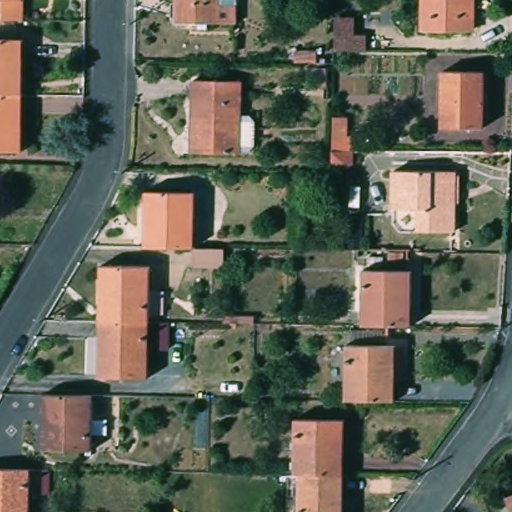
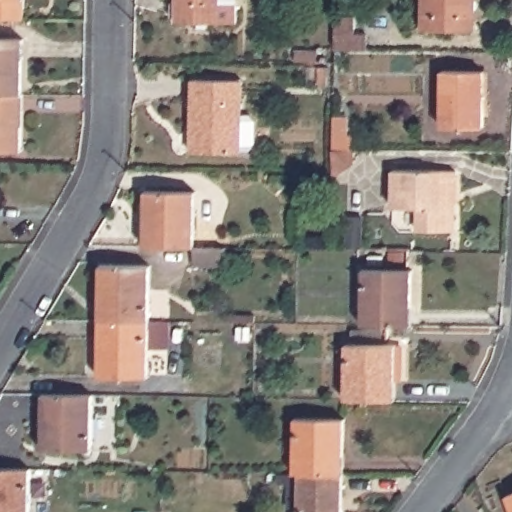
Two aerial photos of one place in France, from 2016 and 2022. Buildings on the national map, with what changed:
unchanged [(21,20),(0,20),(0,0),(21,0),(21,20)]
unchanged [(179,0),(240,0),(240,3),(240,23),(179,21),(179,0)]
unchanged [(471,31),(422,29),(422,0),(471,0),(471,31)]
unchanged [(359,15),(358,32),(370,32),(369,49),(334,48),(334,14),(359,15)]
unchanged [(21,95),(0,95),(0,39),(22,39),(21,95)]
unchanged [(318,49),(318,61),(297,60),(297,49),(318,49)]
unchanged [(444,124),(445,68),(488,69),(487,125),(444,124)]
unchanged [(197,147),(197,76),(247,77),(246,148),(197,147)]
unchanged [(0,151),(0,95),(21,95),(20,151),(0,151)]
unchanged [(334,166),(333,147),(335,114),(350,114),(349,134),(355,134),(355,148),(355,166),(334,166)]
unchanged [(423,230),(423,205),(400,204),(401,165),(461,166),(459,231),(423,230)]
unchanged [(198,247),(148,246),(149,189),(199,191),(198,247)]
unchanged [(197,264),(198,247),(227,247),(227,265),(197,264)]
unchanged [(151,264),(150,320),(101,318),(102,263),(151,264)]
unchanged [(411,271),(410,324),(361,323),(362,270),(411,271)]
unchanged [(255,312),(255,321),(223,320),(224,312),(255,312)]
unchanged [(150,374),(101,374),(101,318),(150,320),(150,374)]
unchanged [(397,346),(396,399),(347,398),(348,346),(397,346)]
unchanged [(45,448),(45,393),(96,394),(95,449),(45,448)]
unchanged [(345,420),(343,473),(302,472),(295,472),(296,419),(345,420)]
unchanged [(32,512),(0,512),(0,466),(33,467),(32,512)]
unchanged [(301,512),(302,472),(343,473),(343,512),(301,512)]
unchanged [(512,490),(512,500),(509,491),(512,490)]

